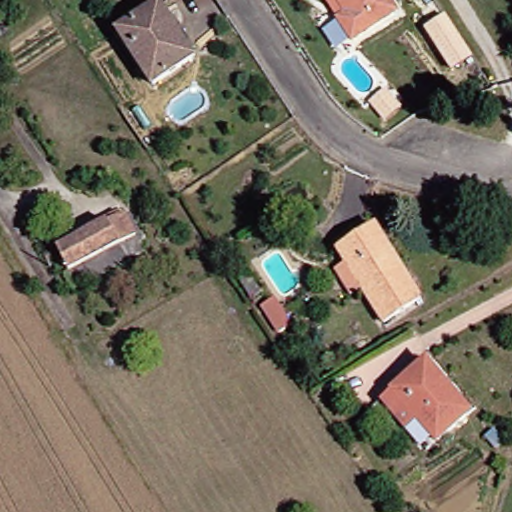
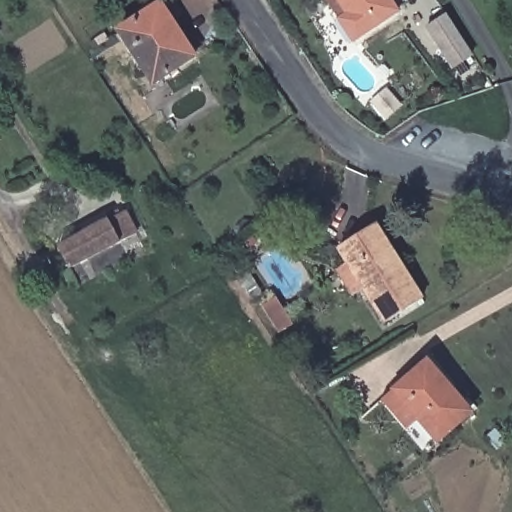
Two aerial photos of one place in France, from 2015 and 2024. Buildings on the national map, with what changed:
unchanged [(391,14),(347,43),(333,21),(341,16),(331,0),(382,0),(391,14)]
unchanged [(147,85),(114,34),(148,11),(154,7),(175,40),(188,60),(147,85)]
unchanged [(447,15),(474,56),(451,70),(424,29),(447,15)]
unchanged [(120,214),(131,235),(66,270),(55,249),(120,214)]
unchanged [(331,273),(342,266),(333,251),(361,234),(370,228),(395,269),(416,301),(379,325),(358,290),(346,297),(331,273)]
unchanged [(275,334),(258,307),(271,300),(287,326),(275,334)]
unchanged [(376,403),(388,393),(423,362),(468,414),(432,445),(413,422),(401,433),(376,403)]

